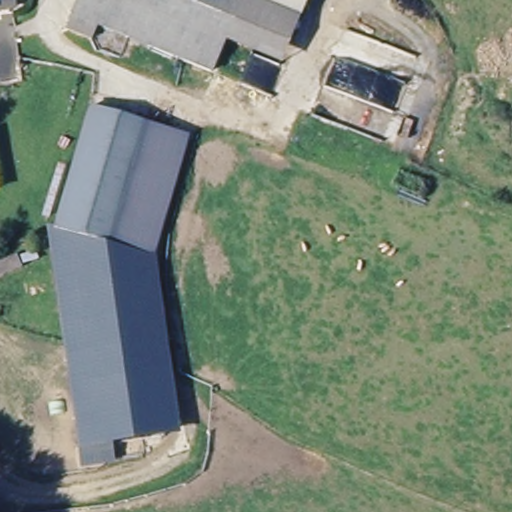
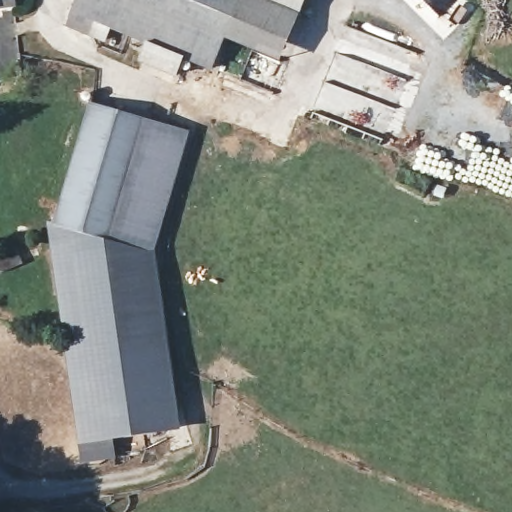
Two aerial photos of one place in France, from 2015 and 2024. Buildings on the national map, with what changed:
unchanged [(0,9),(0,0),(14,0),(16,6),(0,9)]
unchanged [(78,0),(246,0),(229,42),(215,76),(90,24),(84,40),(65,32),(78,0)]
unchanged [(229,42),(246,0),(313,0),(289,64),(229,42)]
unchanged [(174,428),(80,435),(58,227),(97,105),(187,135),(151,252),(174,428)]

